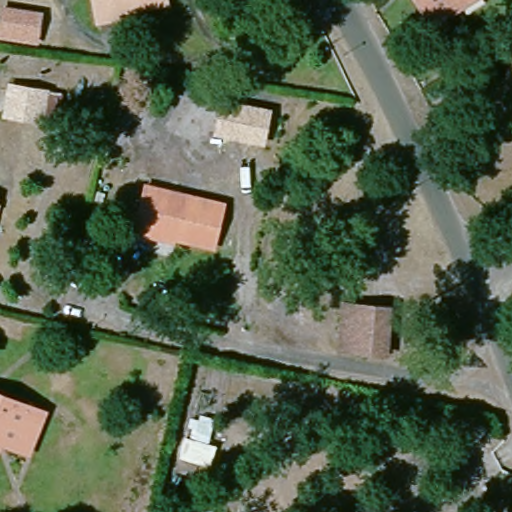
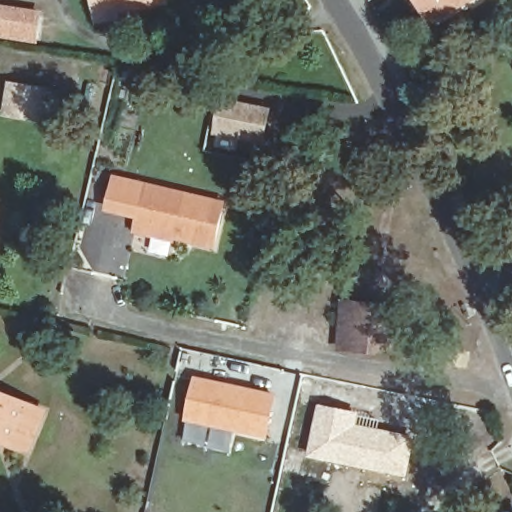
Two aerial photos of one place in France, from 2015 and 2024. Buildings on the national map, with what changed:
unchanged [(114,13),(94,15),(92,0),(125,0),(112,3),(114,13)]
unchanged [(422,0),(460,0),(431,16),(422,0)]
new [(9,34),(0,32),(0,21),(2,10),(14,12),(39,16),(35,39),(9,34)]
new [(13,121),(18,89),(54,96),(50,127),(13,121)]
unchanged [(225,110),(271,119),(265,150),(219,141),(225,110)]
demolished [(10,146),(15,113),(51,120),(47,151),(10,146)]
unchanged [(150,237),(133,233),(134,220),(105,211),(114,179),(225,202),(212,246),(175,237),(174,243),(150,237)]
unchanged [(346,345),(350,304),(392,311),(389,351),(346,345)]
new [(184,421),(182,421),(192,375),(277,394),(265,441),(235,434),(229,455),(180,443),(184,421)]
unchanged [(0,391),(43,410),(26,452),(0,439),(0,391)]
new [(317,403),(381,419),(379,427),(417,434),(408,478),(306,456),(317,403)]

